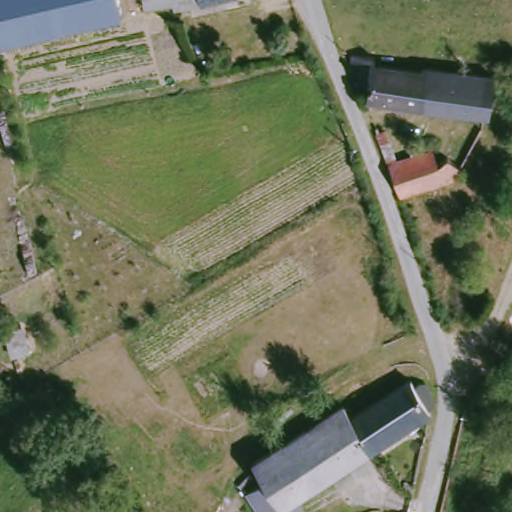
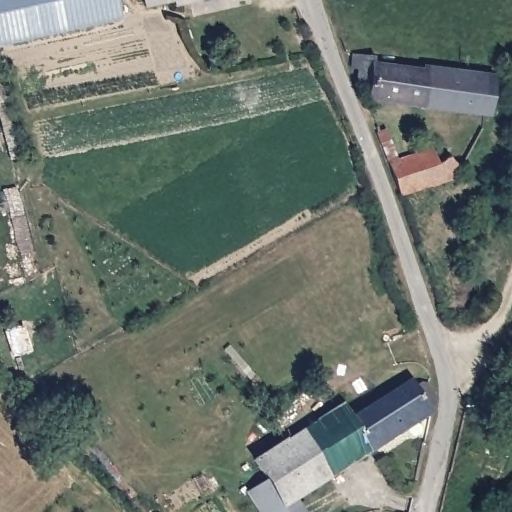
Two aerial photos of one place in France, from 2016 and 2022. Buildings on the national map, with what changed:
unchanged [(0,46),(0,0),(117,0),(122,21),(0,46)]
unchanged [(175,3),(148,9),(146,0),(204,0),(177,6),(175,3)]
unchanged [(497,118),(375,100),(377,86),(365,84),(367,71),(359,69),(362,55),(385,58),(385,65),(432,73),(433,69),(502,80),(497,118)]
unchanged [(393,168),(380,133),(392,130),(402,161),(436,150),(442,167),(460,163),(463,181),(407,199),(393,168)]
unchanged [(300,499),(308,512),(264,512),(252,495),(270,483),(258,463),(346,406),(353,417),(415,378),(436,410),(300,499)]
unchanged [(412,499),(402,498),(405,480),(416,481),(412,499)]

